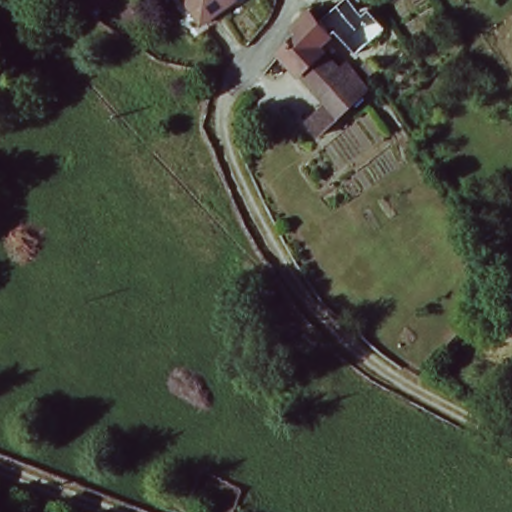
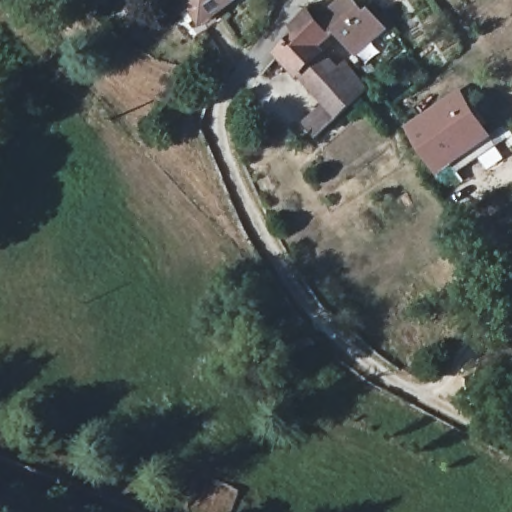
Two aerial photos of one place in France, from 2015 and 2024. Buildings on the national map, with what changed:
unchanged [(87,16),(72,9),(84,0),(108,0),(99,7),(87,16)]
unchanged [(188,0),(237,0),(206,23),(188,0)]
unchanged [(298,28),(311,13),(331,36),(321,45),(342,68),(347,64),(370,92),(318,140),(306,126),(327,105),(313,90),(280,55),(285,48),(298,28)]
unchanged [(345,39),(342,33),(350,27),(354,32),(359,29),(367,38),(361,42),(365,48),(358,55),(353,50),(349,53),(341,44),(345,39)]
new [(460,96),(487,145),(428,177),(402,131),(460,96)]

